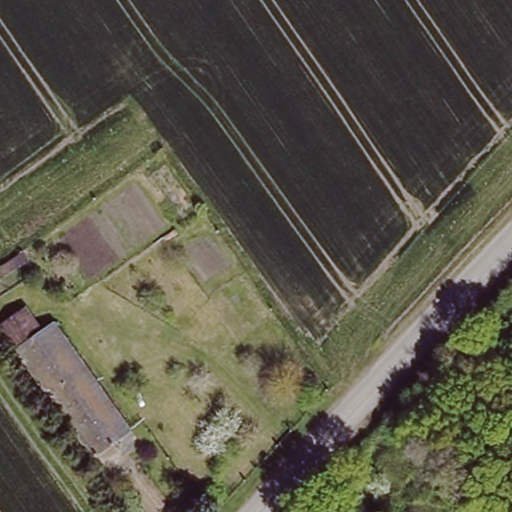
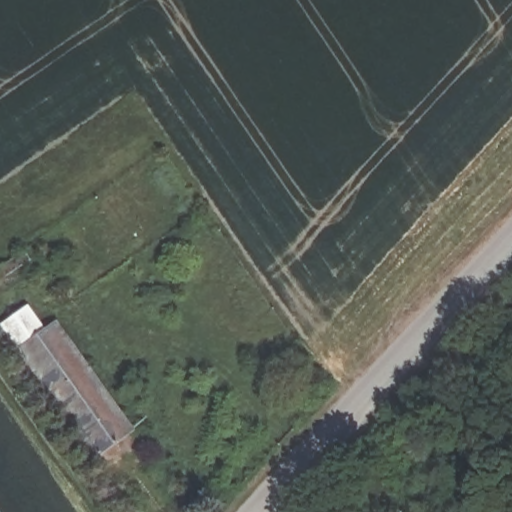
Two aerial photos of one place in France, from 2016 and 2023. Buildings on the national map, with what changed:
unchanged [(129,423),(113,435),(118,442),(97,458),(14,342),(52,314),(129,423)]

